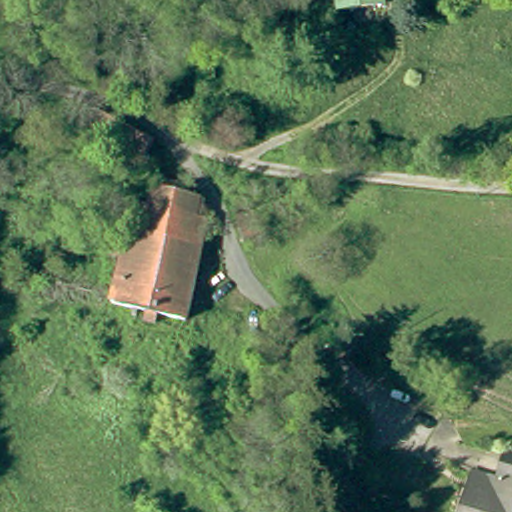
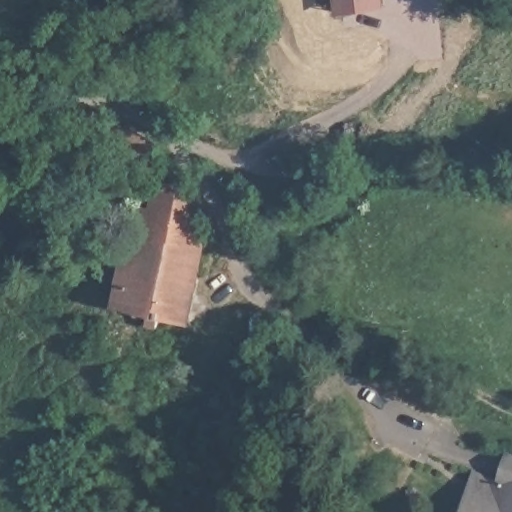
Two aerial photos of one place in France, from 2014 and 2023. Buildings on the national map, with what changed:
unchanged [(380,0),(381,7),(341,12),(340,0),(380,0)]
unchanged [(140,161),(93,147),(98,127),(146,140),(140,161)]
unchanged [(155,195),(193,202),(190,222),(207,225),(187,327),(115,315),(136,212),(151,215),(155,195)]
unchanged [(261,239),(249,244),(240,222),(252,218),(261,239)]
unchanged [(472,498),(493,503),(500,458),(512,461),(512,512),(469,512),(472,498)]

